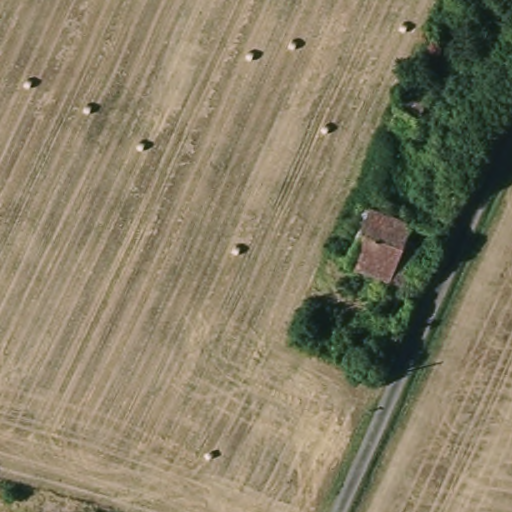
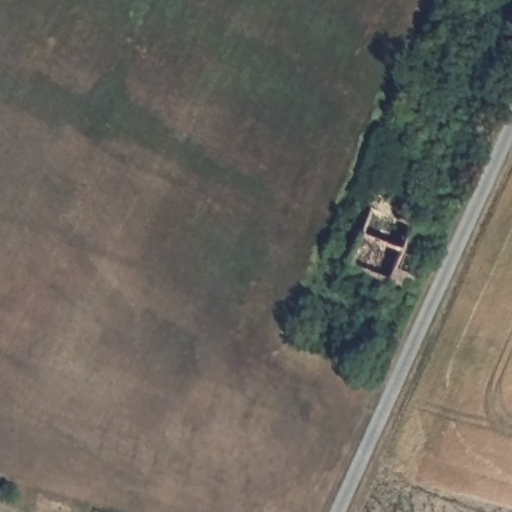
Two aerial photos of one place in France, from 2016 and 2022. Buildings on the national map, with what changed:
unchanged [(401,107),(422,116),(402,164),(380,155),(401,107)]
unchanged [(445,237),(441,245),(441,246),(439,250),(425,245),(411,280),(423,283),(420,290),(403,327),(387,321),(397,285),(355,268),(360,247),(352,244),(366,208),(445,236),(445,237)]

